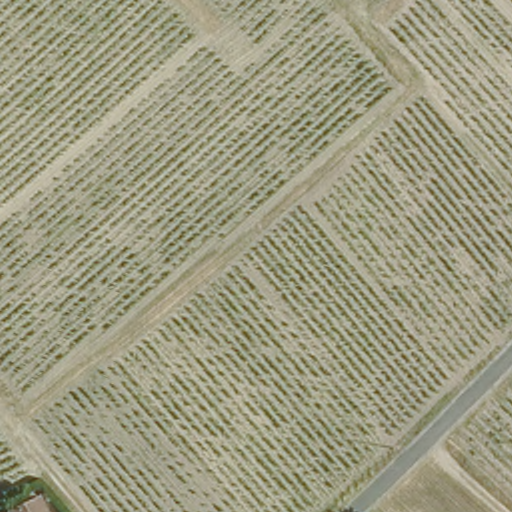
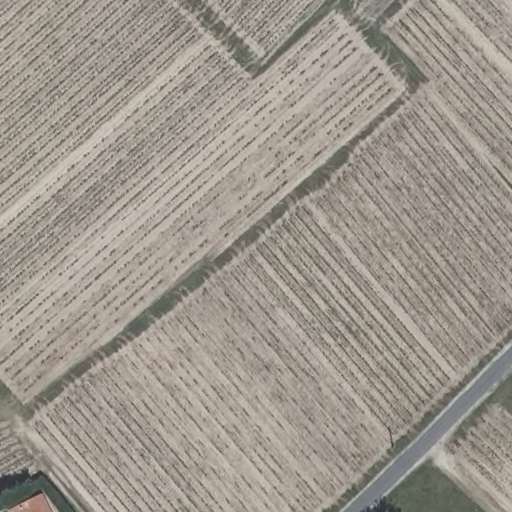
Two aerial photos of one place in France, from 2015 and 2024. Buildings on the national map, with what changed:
unchanged [(43,512),(6,512),(4,508),(35,494),(43,512)]

